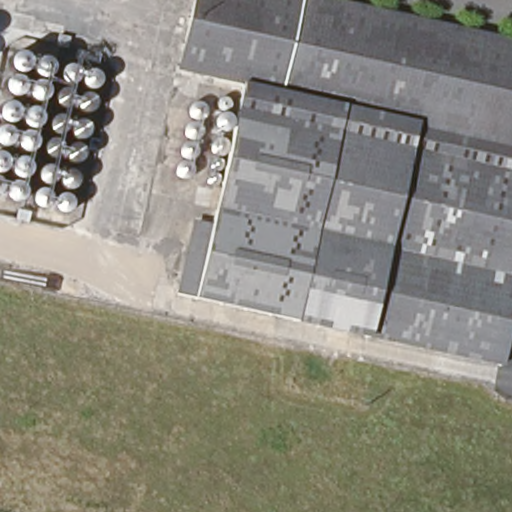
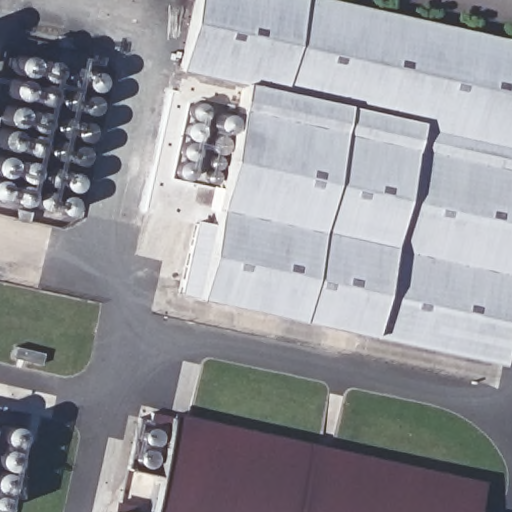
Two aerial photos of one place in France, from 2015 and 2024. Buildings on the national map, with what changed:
unchanged [(188,0),(205,0),(188,72),(175,69),(188,0)]
unchanged [(512,43),(512,343),(506,369),(184,298),(201,225),(219,228),(250,88),(188,72),(205,0),(338,0),(337,5),(512,43)]
unchanged [(19,53),(29,57),(34,62),(44,60),(52,62),(53,67),(23,200),(15,204),(7,205),(3,202),(0,199),(0,94),(9,57),(19,53)]
unchanged [(68,65),(74,68),(79,70),(87,71),(99,70),(102,74),(102,83),(72,207),(70,214),(60,215),(52,211),(51,210),(41,213),(32,210),(29,202),(63,67),(68,65)]
new [(179,177),(176,173),(176,168),(188,109),(190,105),(195,103),(200,103),(207,105),(209,107),(208,113),(216,113),(224,112),(230,115),(232,121),(230,126),(225,153),(218,182),(216,184),(211,183),(179,177)]
new [(481,512),(159,512),(181,414),(487,482),(481,512)]
new [(15,426),(17,431),(16,438),(0,506),(0,423),(15,426)]

